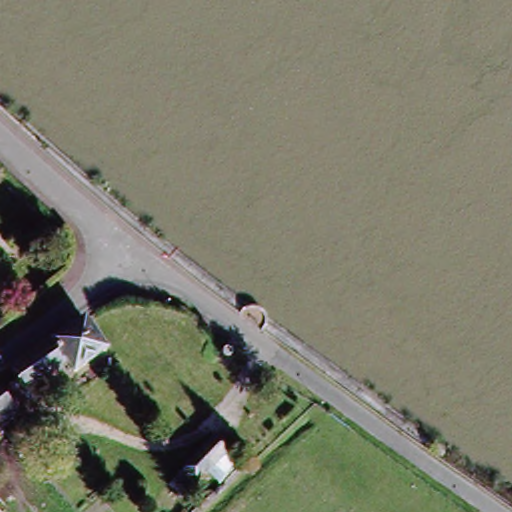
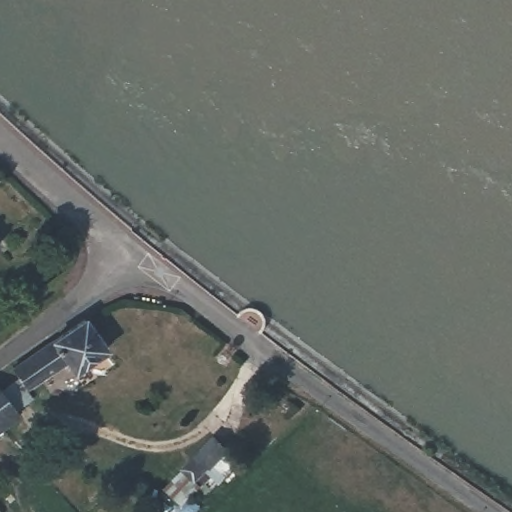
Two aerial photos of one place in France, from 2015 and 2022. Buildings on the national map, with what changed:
unchanged [(105,350),(68,374),(62,365),(24,389),(10,365),(86,317),(105,350)]
unchanged [(17,415),(0,429),(0,396),(17,415)]
unchanged [(217,439),(232,452),(191,496),(177,481),(217,439)]

